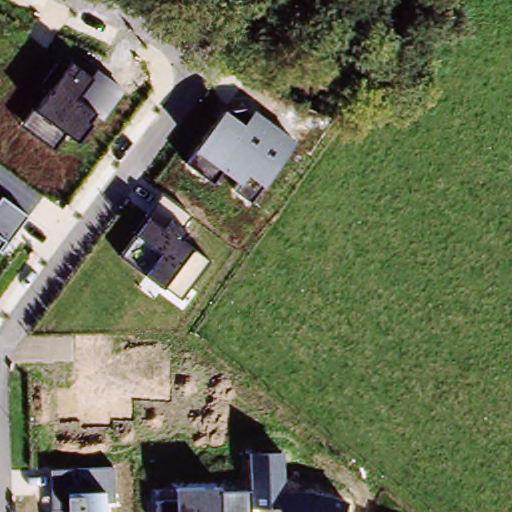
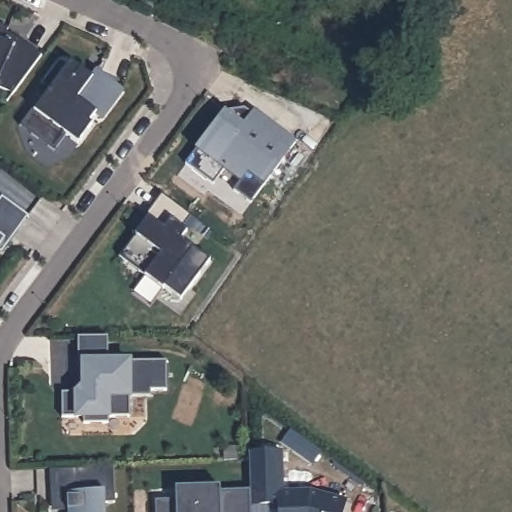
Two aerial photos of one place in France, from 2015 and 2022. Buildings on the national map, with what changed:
new [(1,19),(13,24),(11,29),(26,36),(45,52),(18,89),(0,81),(0,79),(5,69),(0,67),(0,19),(1,19)]
unchanged [(125,89),(103,121),(95,115),(77,141),(66,134),(56,148),(23,124),(75,54),(125,89)]
unchanged [(254,111),(295,142),(254,200),(236,188),(240,183),(222,172),(214,182),(186,162),(223,112),(254,111)]
unchanged [(190,216),(182,227),(186,231),(181,239),(207,258),(180,300),(121,257),(162,196),(190,216)]
unchanged [(3,198),(28,216),(2,251),(0,250),(0,202),(3,198)]
new [(60,391),(77,391),(77,335),(106,335),(106,360),(164,361),(164,390),(149,390),(149,397),(127,397),(127,416),(106,416),(106,422),(81,422),(81,416),(60,416),(60,391)]
unchanged [(344,512),(279,512),(279,508),(251,507),(251,512),(156,512),(156,497),(178,496),(177,487),(219,486),(220,491),(251,487),(252,452),(284,451),(285,489),(316,491),(347,500),(344,512)]
unchanged [(114,501),(106,502),(106,512),(54,512),(53,467),(113,467),(114,501)]

